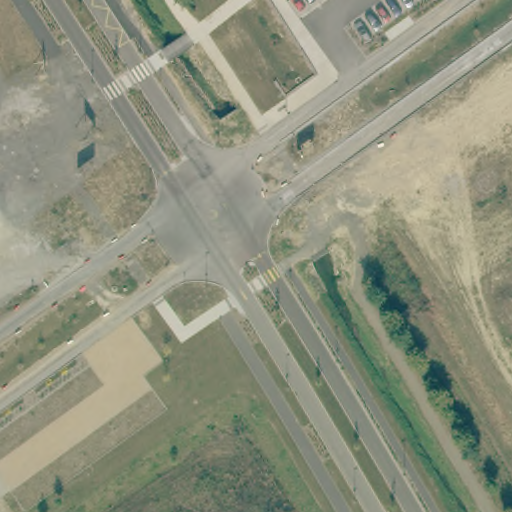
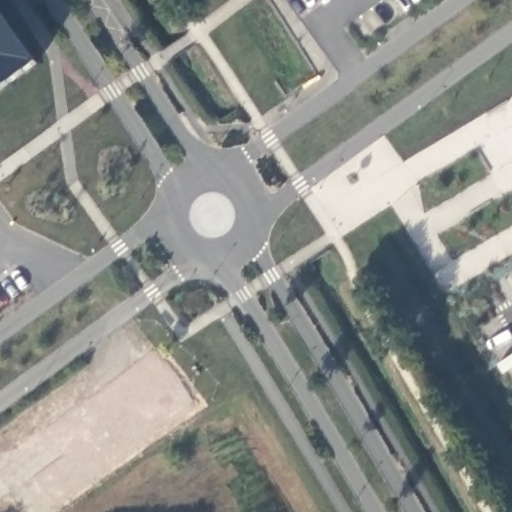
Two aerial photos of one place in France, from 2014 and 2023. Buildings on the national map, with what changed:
new [(36,64),(0,90),(0,14),(36,64)]

